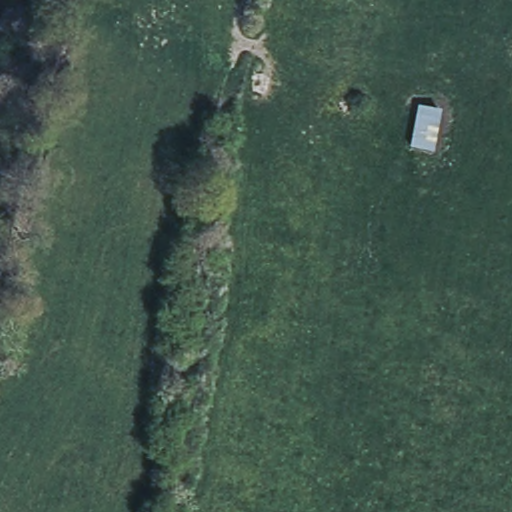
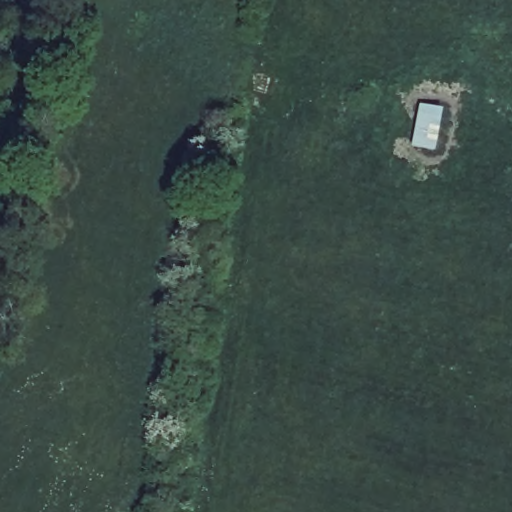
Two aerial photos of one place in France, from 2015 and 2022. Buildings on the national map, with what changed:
unchanged [(442,108),(433,155),(408,153),(417,106),(442,108)]

